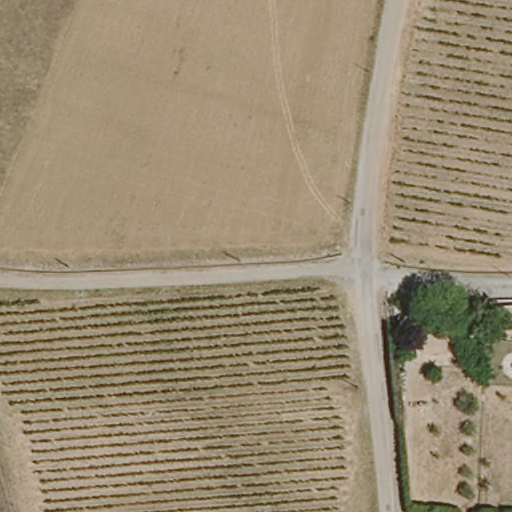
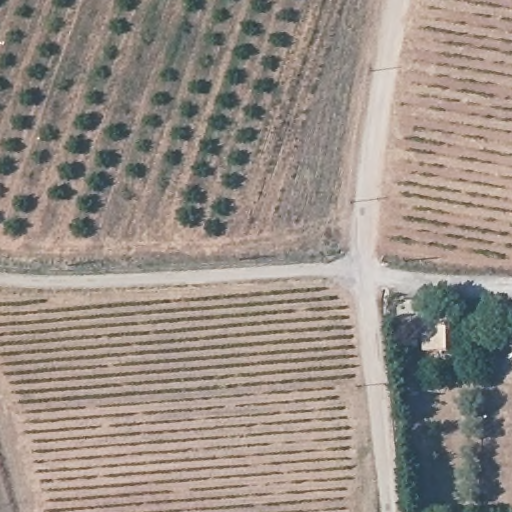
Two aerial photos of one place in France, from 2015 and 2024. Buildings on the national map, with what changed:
unchanged [(512,306),(512,320),(494,320),(494,306),(512,306)]
unchanged [(444,328),(444,357),(423,357),(422,327),(444,328)]

